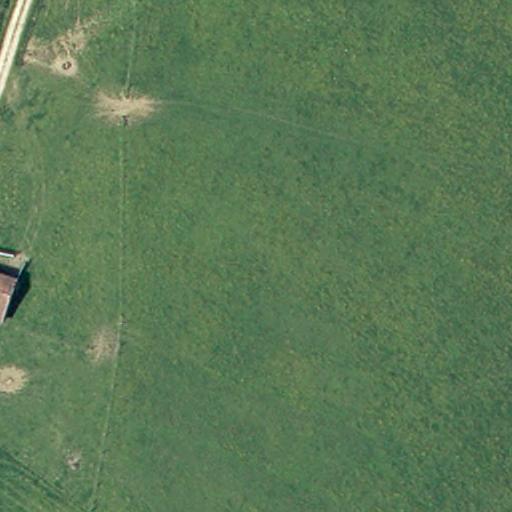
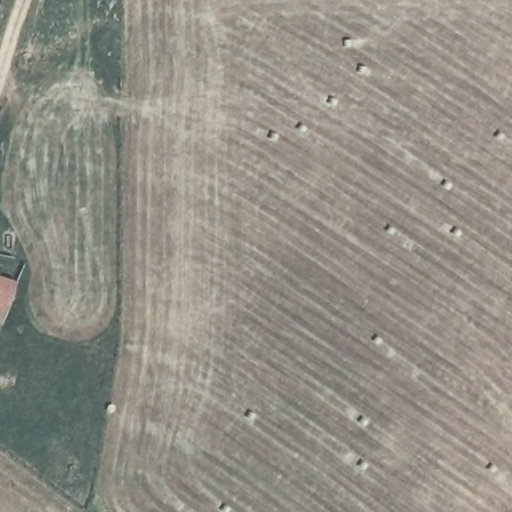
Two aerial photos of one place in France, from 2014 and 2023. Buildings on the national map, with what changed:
unchanged [(20,278),(3,328),(0,327),(0,272),(20,278)]

